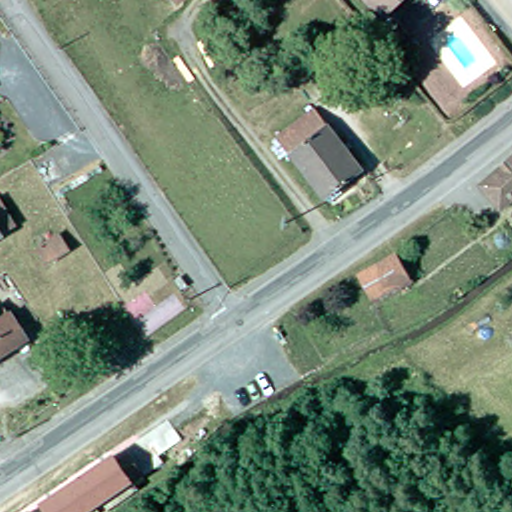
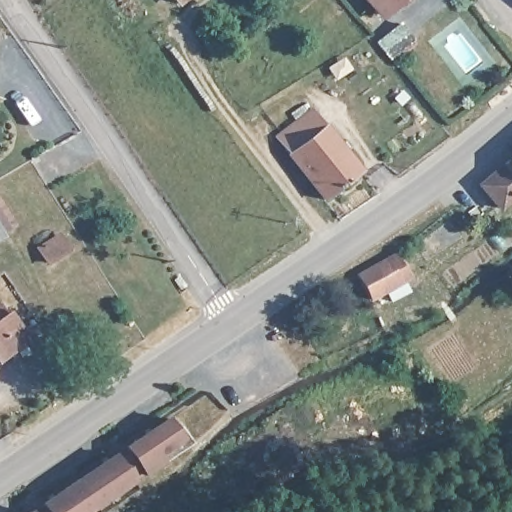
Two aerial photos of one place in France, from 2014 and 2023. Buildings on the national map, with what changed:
unchanged [(381,10),(373,0),(399,0),(384,13),(381,10)]
unchanged [(416,43),(393,63),(381,48),(403,29),(416,43)]
unchanged [(314,110),(364,171),(326,200),(278,138),(314,110)]
unchanged [(479,183),(512,153),(512,194),(499,205),(479,183)]
unchanged [(3,237),(5,240),(0,242),(0,202),(5,210),(16,230),(3,237)]
unchanged [(46,224),(56,239),(38,253),(27,237),(46,224)]
unchanged [(349,277),(388,255),(403,281),(362,302),(349,277)]
unchanged [(10,314),(28,340),(0,358),(0,321),(10,314)]
new [(168,422),(183,446),(161,461),(163,466),(133,485),(114,455),(168,422)]
unchanged [(114,455),(133,485),(90,512),(27,512),(114,455)]

